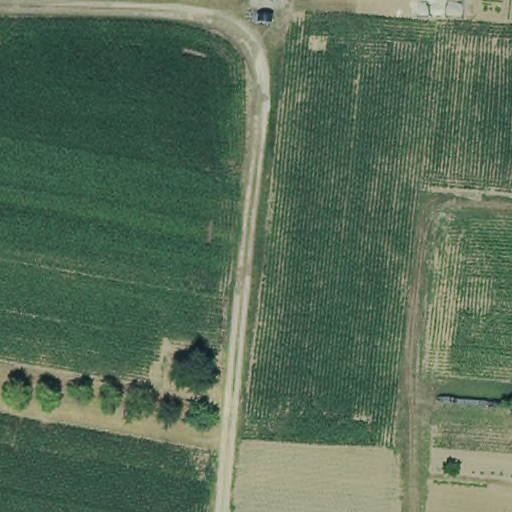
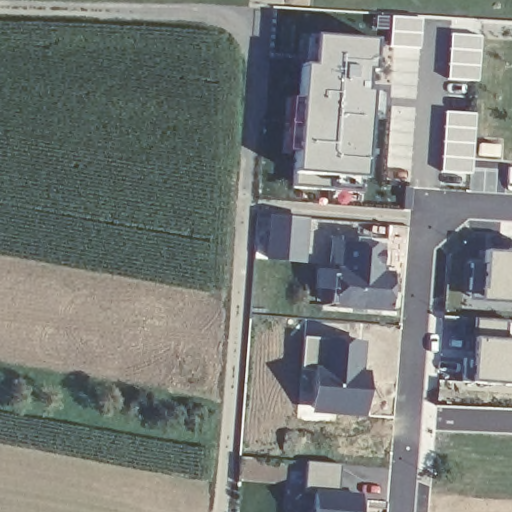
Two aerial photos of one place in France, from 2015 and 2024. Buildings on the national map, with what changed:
new [(375,41),(373,75),(369,75),(362,192),(293,187),(301,64),(310,65),(312,37),(375,41)]
new [(309,219),(308,263),(268,263),(270,218),(309,219)]
new [(380,245),(380,274),(401,275),(399,313),(330,308),(332,271),(343,270),(344,245),(380,245)]
new [(480,302),(482,251),(512,252),(512,304),(480,302)]
new [(476,358),(473,358),(475,318),(506,320),(506,338),(512,339),(512,384),(476,382),(476,358)]
new [(366,373),(370,373),(369,417),(313,415),(316,369),(323,369),(324,340),(367,340),(366,373)]
new [(362,512),(314,512),(315,492),(307,492),(308,462),(341,464),(340,493),(363,495),(362,512)]

